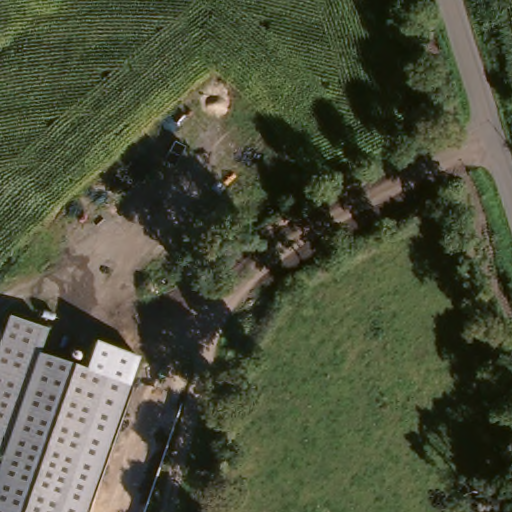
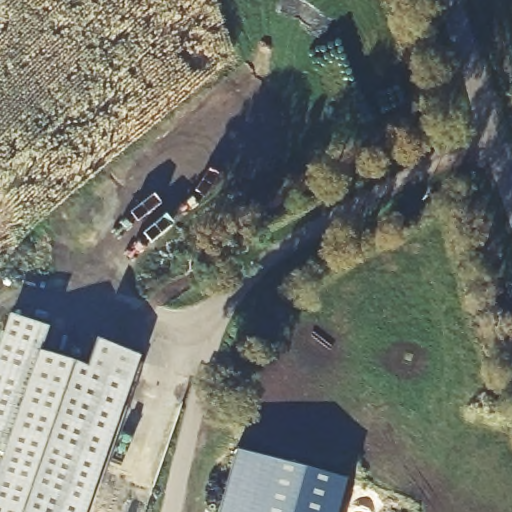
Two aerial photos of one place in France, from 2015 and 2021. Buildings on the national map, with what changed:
unchanged [(80,372),(87,337),(142,357),(85,512),(0,512),(0,469),(1,467),(0,467),(0,358),(12,324),(50,336),(41,363),(80,372)]
new [(344,483),(336,512),(218,512),(235,449),(344,483)]

